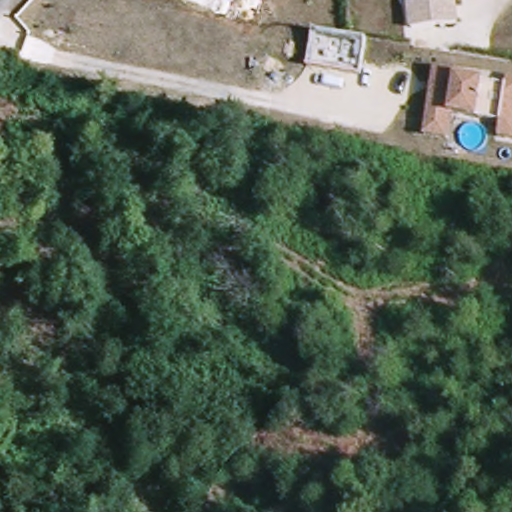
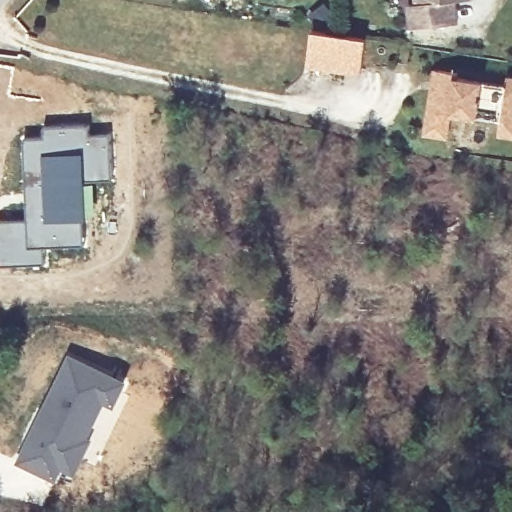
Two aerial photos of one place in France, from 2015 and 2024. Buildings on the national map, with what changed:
unchanged [(408,3),(416,1),(416,0),(466,0),(459,1),(461,23),(411,27),(408,3)]
unchanged [(307,66),(312,30),(367,40),(360,75),(307,66)]
unchanged [(427,132),(431,107),(433,86),(436,66),(441,67),(459,70),(458,75),(507,82),(508,74),(512,74),(512,135),(500,133),(502,119),(453,111),(450,135),(427,132)]
new [(44,135),(44,125),(90,123),(90,130),(111,130),(113,180),(95,181),(94,221),(90,247),(49,247),(29,246),(26,217),(22,181),(22,137),(44,135)]
new [(29,246),(49,247),(49,264),(0,265),(0,219),(26,217),(29,246)]
new [(29,427),(68,350),(127,380),(113,408),(106,405),(87,449),(72,478),(60,472),(56,482),(14,462),(29,427)]

